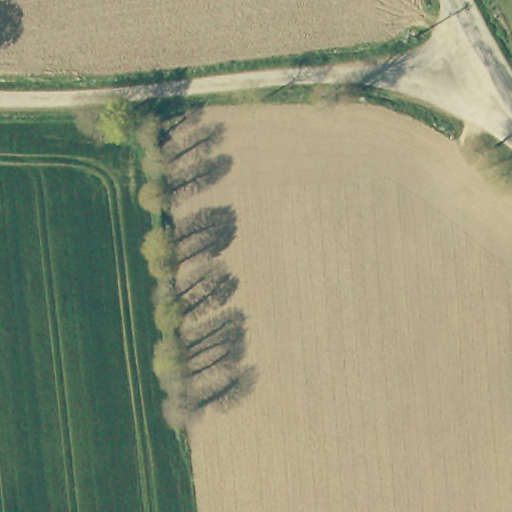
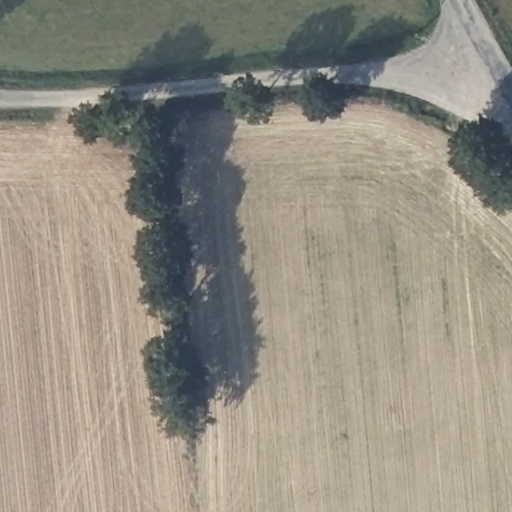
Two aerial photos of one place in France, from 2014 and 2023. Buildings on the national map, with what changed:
[]

